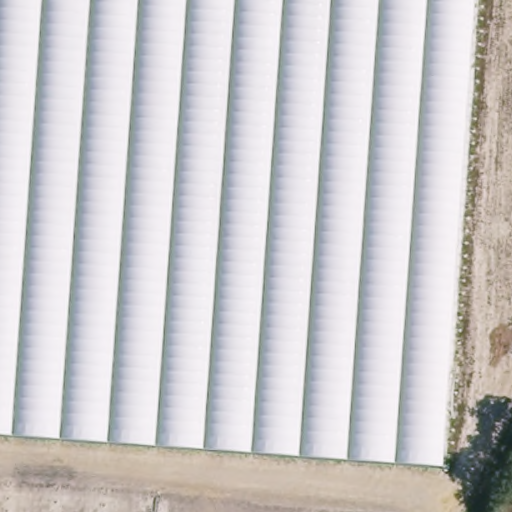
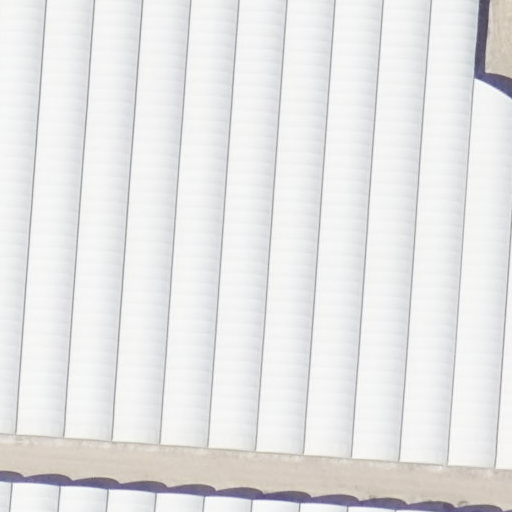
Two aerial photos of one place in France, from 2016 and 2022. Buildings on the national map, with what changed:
unchanged [(444,466),(0,435),(0,0),(475,0),(444,466)]
new [(512,107),(512,472),(444,466),(470,81),(512,107)]
new [(0,512),(0,484),(401,512),(0,512)]

